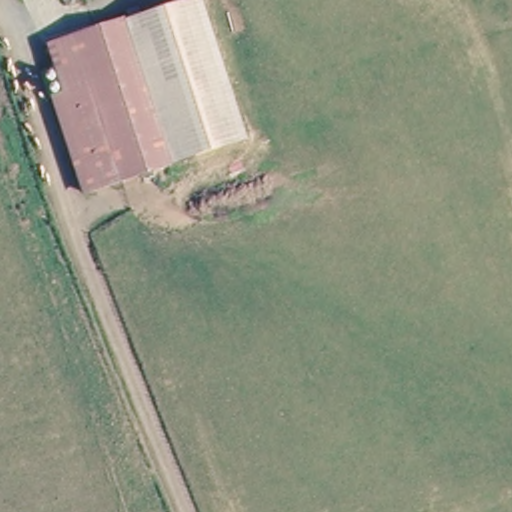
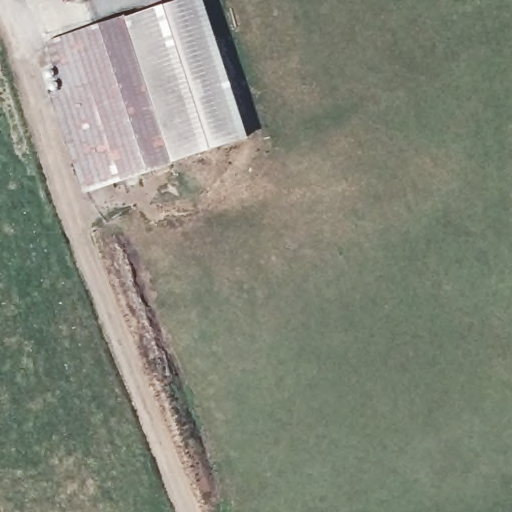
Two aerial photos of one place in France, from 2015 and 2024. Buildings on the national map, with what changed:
unchanged [(59,91),(45,39),(185,0),(200,0),(244,142),(82,191),(52,94),(59,91)]

